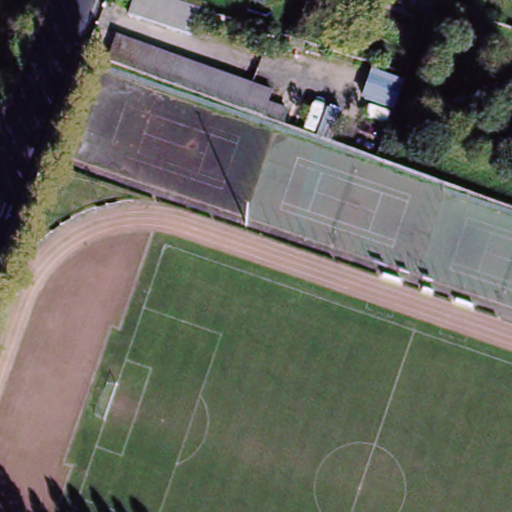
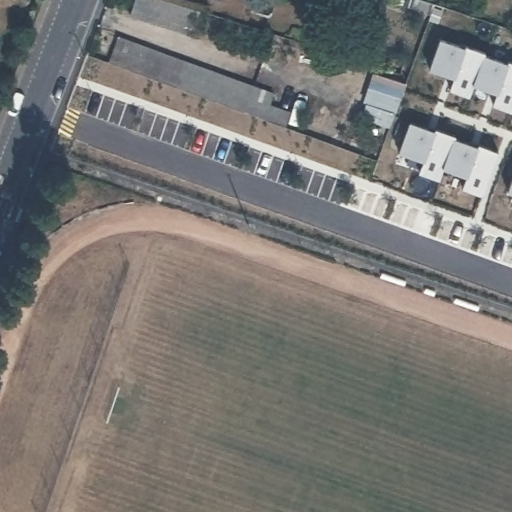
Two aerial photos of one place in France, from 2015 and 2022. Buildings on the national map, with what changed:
unchanged [(191,39),(129,18),(135,0),(156,0),(199,14),(191,39)]
unchanged [(216,0),(222,0),(221,2),(216,0)]
unchanged [(247,109),(186,87),(113,60),(122,35),(255,82),(272,89),(268,101),(288,109),(284,122),(263,115),(247,109)]
new [(512,112),(492,104),(496,92),(472,84),(468,96),(449,89),(453,77),(428,67),(439,39),(464,48),(465,46),(484,54),(483,56),(507,64),(508,61),(512,63),(512,112)]
new [(396,113),(362,105),(371,74),(406,85),(396,113)]
new [(479,146),(497,152),(480,195),(462,189),(466,176),(441,168),(437,179),(419,172),(423,160),(397,151),(407,122),(479,146)]
new [(506,191),(512,176),(512,193),(506,191)]

